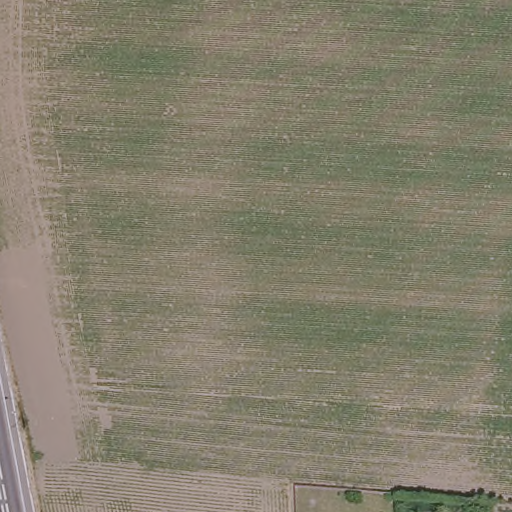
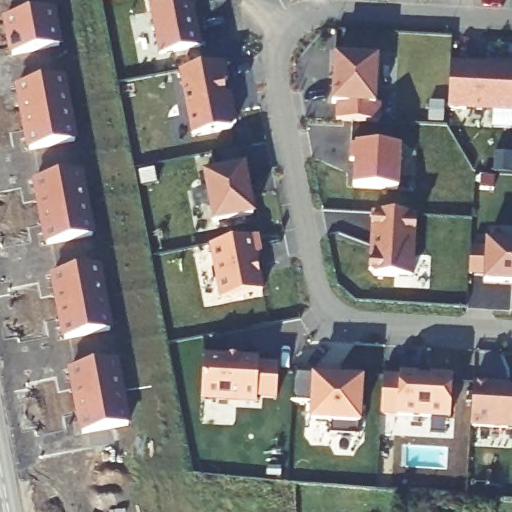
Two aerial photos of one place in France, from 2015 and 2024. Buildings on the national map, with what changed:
new [(202,49),(159,57),(148,0),(193,0),(202,49)]
new [(63,48),(11,58),(1,19),(54,10),(63,48)]
new [(375,107),(381,107),(378,127),(336,122),(337,108),(332,108),(335,55),(380,58),(375,107)]
new [(449,111),(452,63),(512,68),(512,115),(449,111)]
new [(237,129),(192,138),(177,75),(226,67),(237,129)]
new [(79,142),(26,151),(13,86),(65,78),(79,142)]
new [(400,190),(353,189),(355,165),(349,164),(350,147),(357,146),(400,149),(400,190)]
new [(255,218),(212,227),(201,175),(245,166),(255,218)]
new [(96,235),(44,245),(29,182),(82,171),(96,235)]
new [(417,216),(412,278),(375,277),(369,268),(372,214),(417,216)]
new [(262,254),(257,255),(263,292),(220,300),(207,248),(257,238),(262,254)]
new [(482,286),(484,278),(470,279),(472,249),(485,251),(486,240),(512,242),(512,287),(482,286)]
new [(111,330),(62,340),(50,275),(101,265),(111,330)]
new [(258,366),(277,366),(276,403),(256,402),(257,408),(201,404),(205,356),(258,361),(258,366)]
new [(130,426),(80,435),(67,369),(118,359),(130,426)]
new [(451,422),(380,416),(382,378),(397,379),(397,373),(452,377),(451,422)]
new [(359,426),(358,438),(330,437),(330,425),(310,424),(311,404),(292,403),(293,375),(312,376),(365,379),(359,426)]
new [(470,431),(472,385),(512,388),(512,434),(470,431)]

